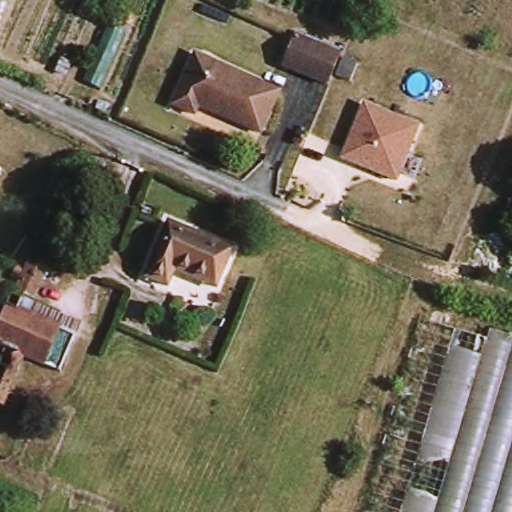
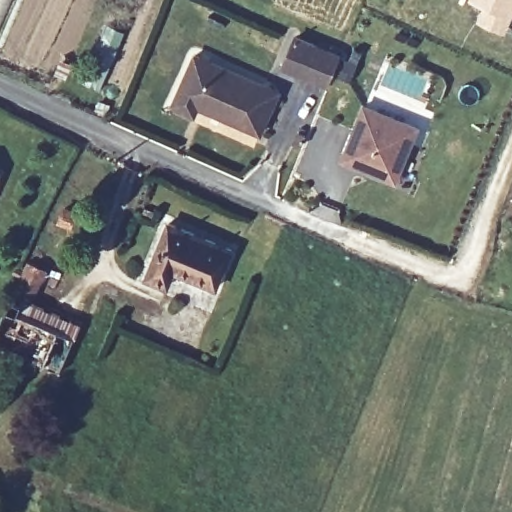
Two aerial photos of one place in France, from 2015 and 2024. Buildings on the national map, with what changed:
new [(505,31),(476,19),(482,6),(470,0),(512,0),(512,15),(505,31)]
unchanged [(298,35),(344,55),(331,84),(285,62),(298,35)]
unchanged [(174,104),(196,54),(280,92),(262,133),(200,106),(196,114),(174,104)]
unchanged [(420,126),(397,182),(339,160),(363,104),(420,126)]
unchanged [(61,222),(61,211),(72,211),(72,222),(61,222)]
unchanged [(179,272),(173,288),(150,281),(168,228),(234,251),(221,287),(179,272)]
unchanged [(31,313),(11,303),(30,262),(33,257),(52,266),(31,313)]
unchanged [(31,313),(81,333),(64,370),(27,352),(2,401),(0,400),(0,326),(11,303),(31,313)]
demolished [(488,342),(494,332),(512,338),(512,512),(372,512),(423,322),(488,342)]

